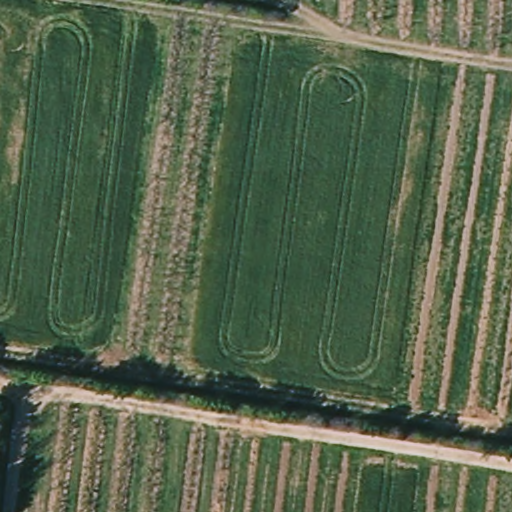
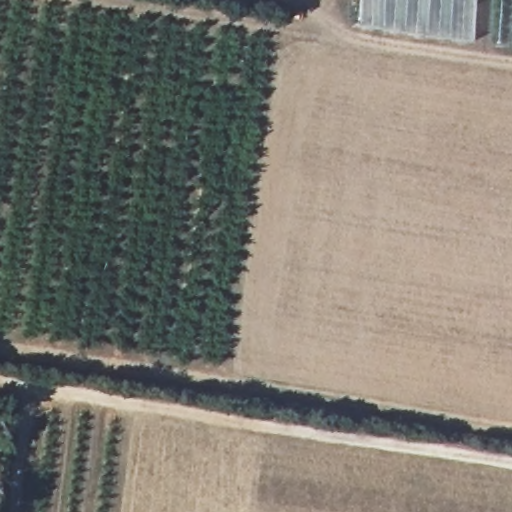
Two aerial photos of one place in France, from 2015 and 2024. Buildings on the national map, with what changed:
new [(357,24),(358,0),(473,0),(471,39),(357,24)]
new [(487,43),(490,0),(512,0),(512,46),(487,43)]

